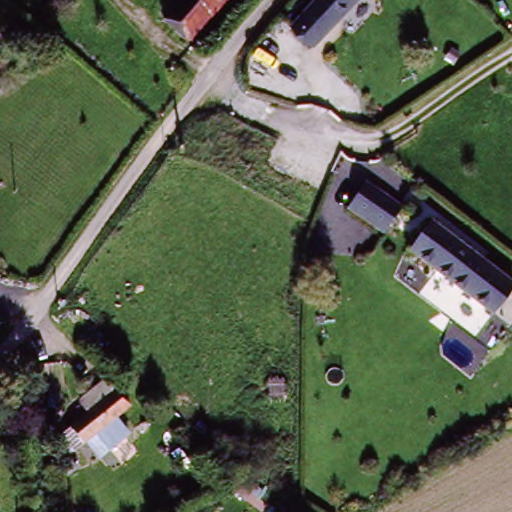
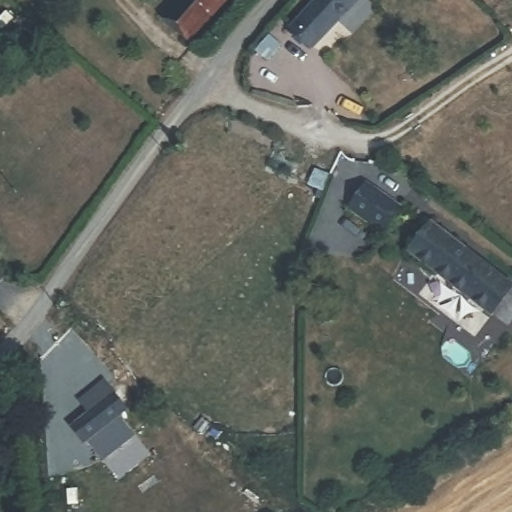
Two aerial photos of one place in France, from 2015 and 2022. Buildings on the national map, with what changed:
unchanged [(185,0),(225,0),(191,36),(170,15),(185,0)]
unchanged [(316,46),(301,30),(329,0),(360,0),(316,46)]
unchanged [(401,214),(382,239),(347,212),(366,187),(401,214)]
unchanged [(507,298),(485,327),(402,262),(423,234),(507,298)]
unchanged [(87,389),(111,372),(131,400),(120,408),(132,425),(112,440),(105,430),(95,437),(90,430),(87,432),(75,416),(95,401),(87,389)]
unchanged [(241,460),(265,480),(250,497),(226,477),(241,460)]

